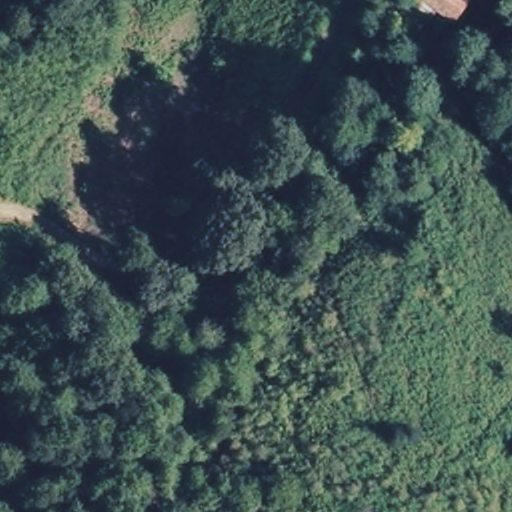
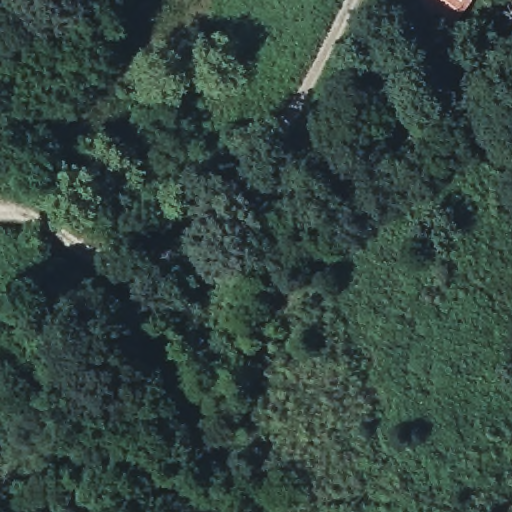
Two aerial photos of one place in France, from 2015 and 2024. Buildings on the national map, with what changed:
unchanged [(471,1),(451,25),(419,0),(470,0),(471,1)]

